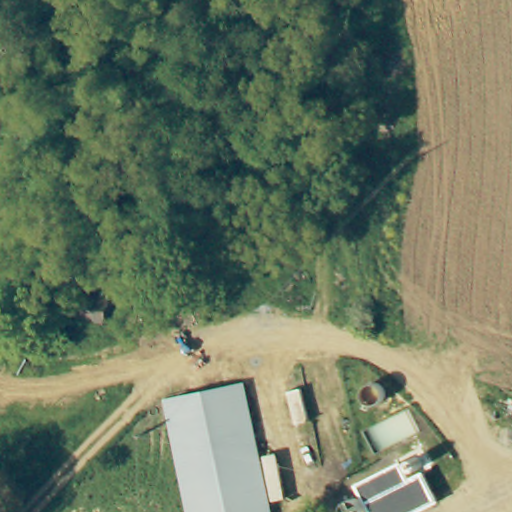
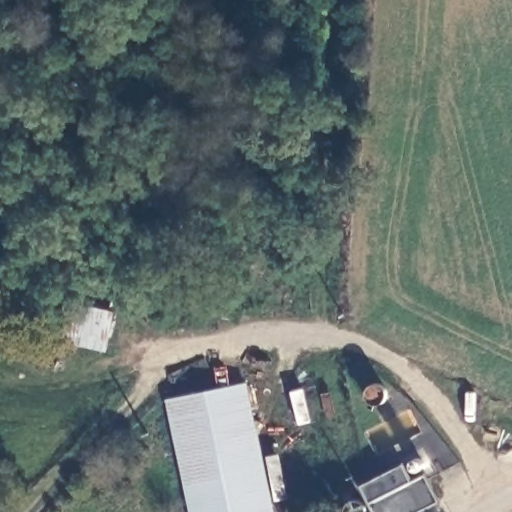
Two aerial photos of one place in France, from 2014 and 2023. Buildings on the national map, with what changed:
unchanged [(187,512),(165,398),(242,381),(267,512),(187,512)]
unchanged [(399,462),(406,475),(418,470),(431,500),(405,512),(367,512),(355,485),(399,462)]
unchanged [(346,512),(329,512),(329,511),(330,501),(337,493),(343,491),(350,505),(346,512)]

